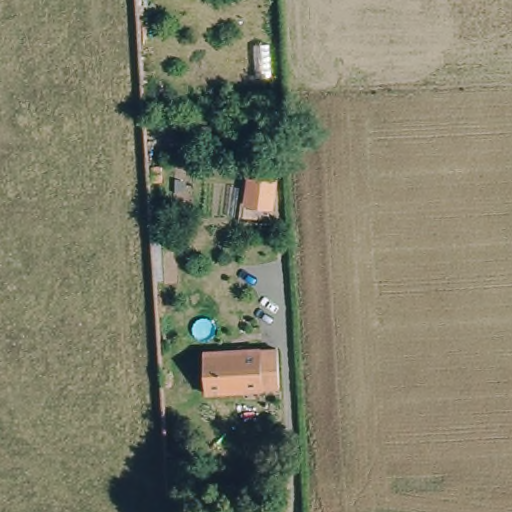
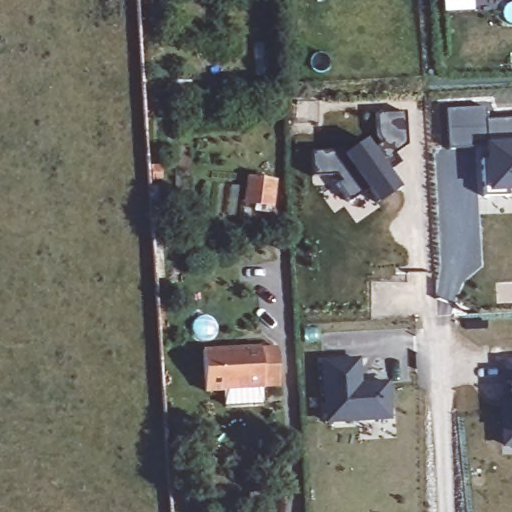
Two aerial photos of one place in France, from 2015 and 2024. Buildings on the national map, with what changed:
unchanged [(443,9),(442,0),(474,0),(474,8),(443,9)]
new [(484,121),(512,120),(512,193),(507,193),(509,198),(482,199),(481,161),(482,161),(485,161),(484,149),(447,150),(445,110),(485,109),(484,121)]
new [(406,147),(394,156),(400,164),(389,173),(399,189),(377,206),(366,191),(349,203),(336,185),(341,182),(334,176),(310,178),(309,153),(347,152),(365,139),(374,150),(383,143),(378,134),(377,115),(404,114),(406,147)]
unchanged [(253,168),(279,177),(271,201),(244,192),(253,168)]
unchanged [(281,343),(283,383),(210,388),(208,348),(281,343)]
new [(327,359),(361,357),(363,382),(391,381),(393,416),(331,420),(327,359)]
new [(508,384),(507,365),(512,364),(512,384),(508,384)]
new [(504,413),(512,413),(512,447),(506,447),(504,413)]

